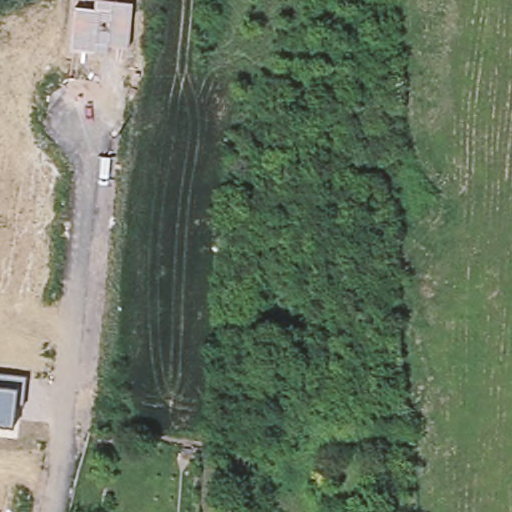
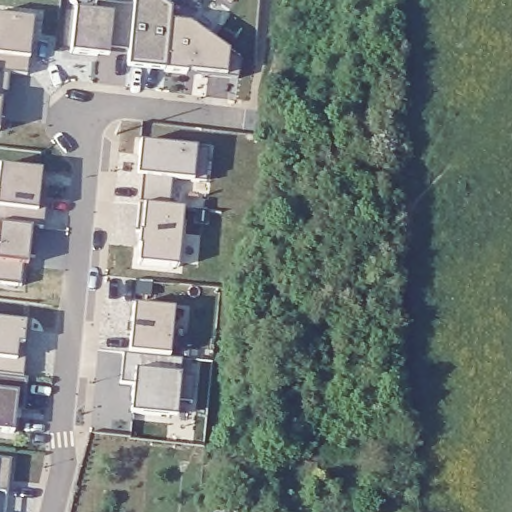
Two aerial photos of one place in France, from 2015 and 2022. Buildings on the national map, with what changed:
unchanged [(96,45),(95,53),(72,50),(75,8),(95,11),(96,1),(132,5),(128,50),(96,45)]
new [(32,20),(27,58),(26,74),(8,73),(3,118),(0,117),(0,16),(32,20)]
new [(170,23),(189,24),(227,51),(240,61),(238,78),(225,75),(187,71),(165,70),(170,23)]
new [(145,207),(138,207),(142,176),(137,176),(140,143),(195,149),(207,150),(205,182),(191,181),(172,179),(169,207),(183,209),(177,268),(138,263),(145,207)]
new [(0,284),(0,167),(40,171),(38,190),(46,191),(43,228),(38,227),(35,258),(27,257),(25,265),(22,265),(20,287),(0,284)]
new [(133,305),(172,308),(167,356),(180,358),(179,373),(193,375),(190,402),(177,400),(175,417),(130,411),(133,382),(121,381),(123,353),(130,352),(133,305)]
new [(0,371),(0,320),(23,322),(22,345),(27,346),(22,373),(0,371)]
unchanged [(0,428),(0,376),(24,379),(21,407),(13,406),(11,429),(0,428)]
new [(9,460),(6,490),(0,489),(0,458),(9,460)]

